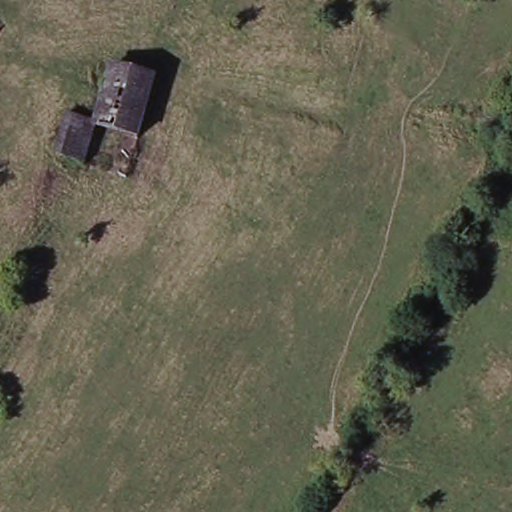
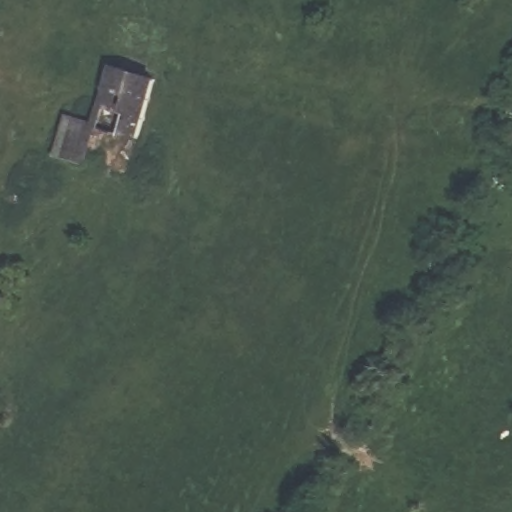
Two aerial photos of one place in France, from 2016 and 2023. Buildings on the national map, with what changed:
unchanged [(96,133),(84,171),(50,159),(64,115),(91,124),(110,67),(155,83),(138,144),(96,133)]

